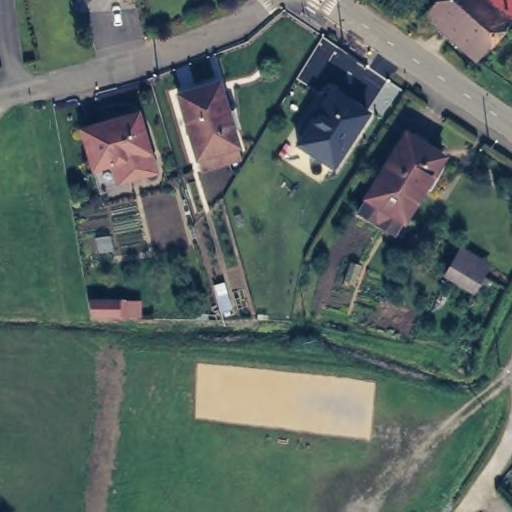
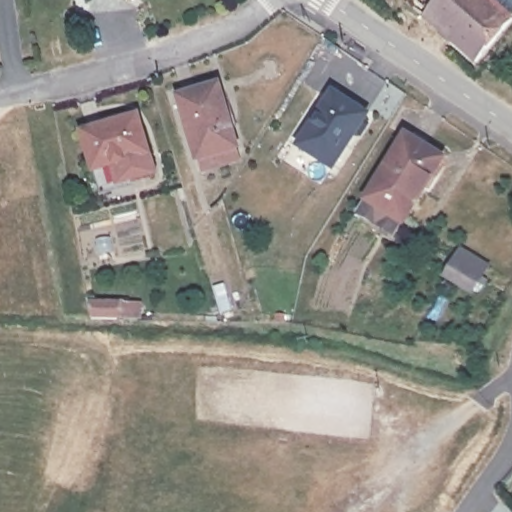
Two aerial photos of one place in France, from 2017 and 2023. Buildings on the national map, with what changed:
unchanged [(121,0),(126,0),(125,2),(121,0)]
unchanged [(401,1),(402,0),(512,0),(512,11),(509,15),(508,18),(474,63),(403,4),(401,1)]
unchanged [(219,89),(239,152),(198,165),(180,103),(219,89)]
unchanged [(366,111),(333,166),(298,143),(334,90),(366,111)]
unchanged [(139,109),(156,166),(115,178),(111,162),(92,167),(80,126),(139,109)]
unchanged [(404,133),(443,158),(391,235),(354,211),(404,133)]
unchanged [(441,277),(452,259),(454,260),(460,247),(486,263),(478,276),(467,294),(441,277)]
unchanged [(72,301),(99,298),(103,321),(76,320),(76,319),(72,301)]

